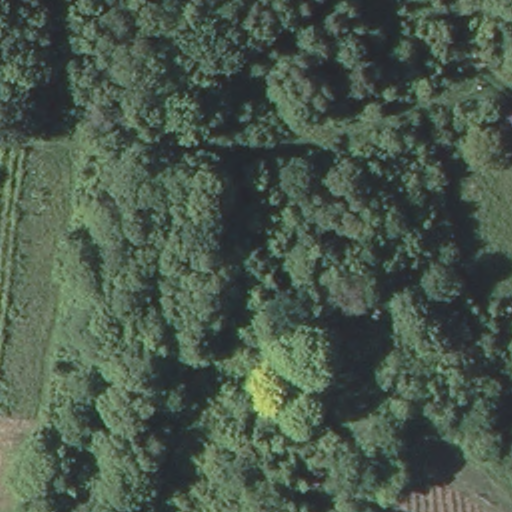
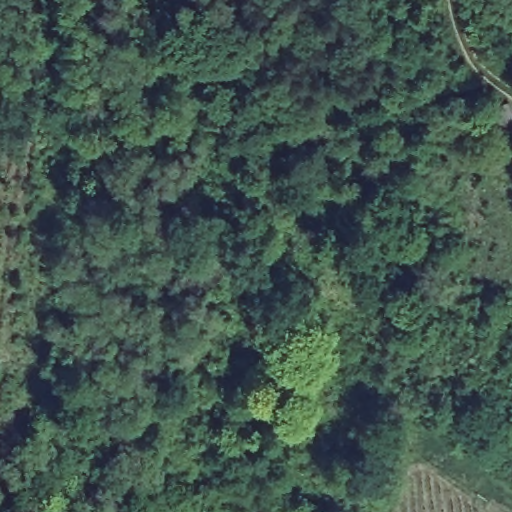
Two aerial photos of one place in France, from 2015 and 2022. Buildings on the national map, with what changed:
unchanged [(512,125),(488,132),(478,107),(510,100),(512,103),(512,125)]

